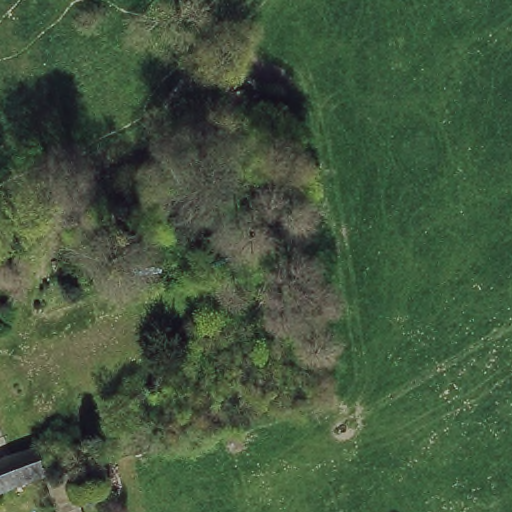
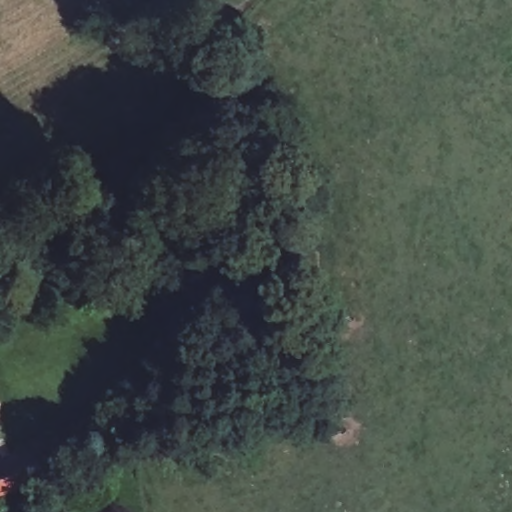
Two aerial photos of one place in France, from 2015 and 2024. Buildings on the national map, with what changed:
unchanged [(25,452),(36,484),(31,485),(0,494),(0,460),(25,452)]

